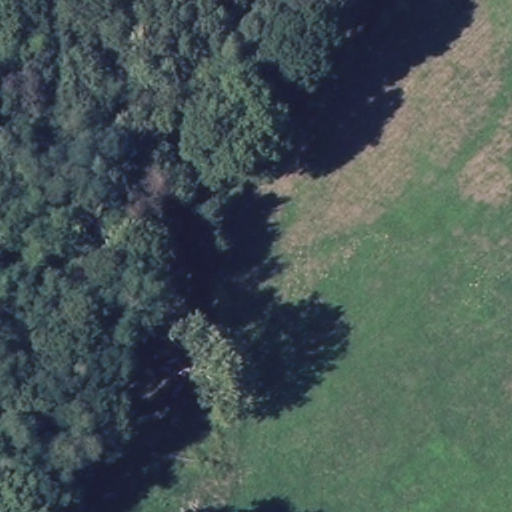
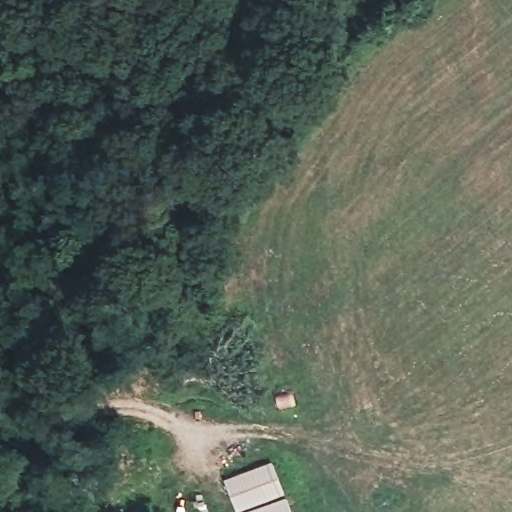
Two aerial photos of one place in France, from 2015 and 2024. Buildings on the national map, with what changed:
new [(272,462),(286,495),(242,512),(237,512),(225,480),(272,462)]
new [(286,495),(292,512),(242,512),(286,495)]

